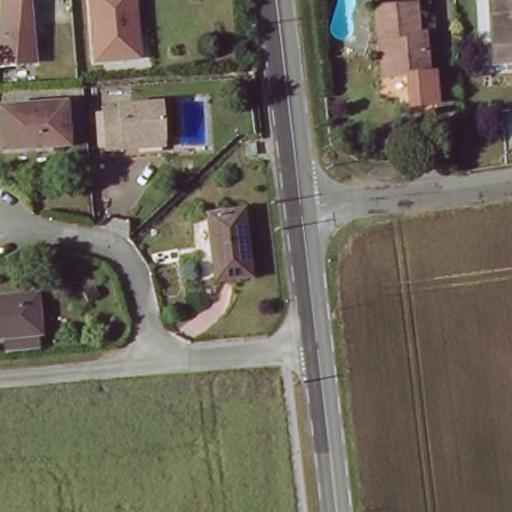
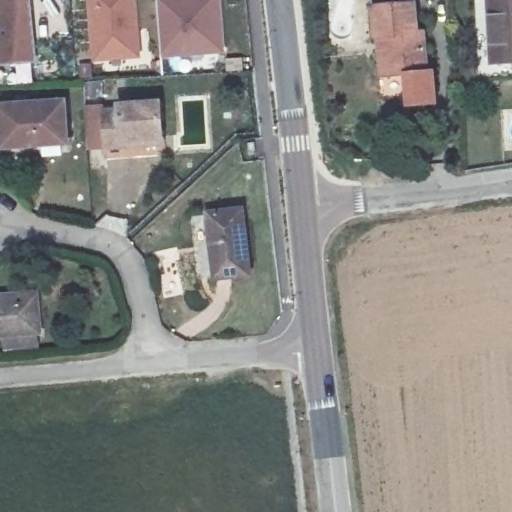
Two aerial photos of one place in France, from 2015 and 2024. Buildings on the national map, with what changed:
unchanged [(0,66),(0,21),(2,0),(32,0),(38,60),(0,66)]
unchanged [(93,60),(91,0),(140,0),(143,56),(93,60)]
new [(163,58),(160,0),(223,0),(226,52),(163,58)]
unchanged [(373,4),(407,0),(412,0),(415,30),(422,29),(426,69),(430,69),(433,100),(409,104),(405,71),(388,73),(380,74),(376,35),(373,4)]
unchanged [(502,64),(490,65),(485,3),(496,2),(512,1),(512,63),(502,64)]
unchanged [(120,105),(121,100),(160,100),(162,135),(123,135),(124,144),(107,145),(105,106),(120,105)]
unchanged [(67,101),(70,142),(3,145),(2,103),(67,101)]
unchanged [(259,148),(260,162),(246,162),(246,149),(259,148)]
unchanged [(238,211),(245,279),(213,280),(207,213),(238,211)]
unchanged [(8,301),(29,299),(32,332),(0,336),(0,294),(7,293),(8,301)]

